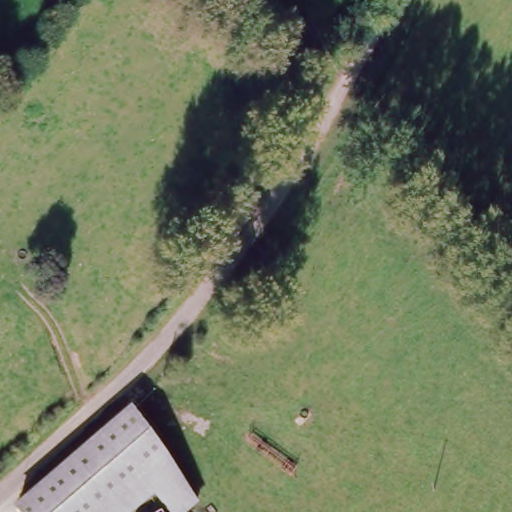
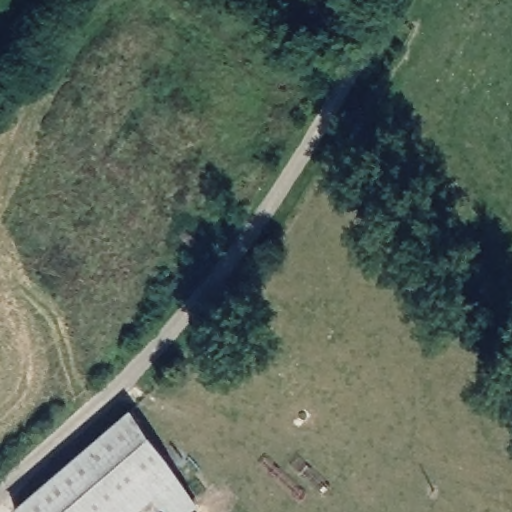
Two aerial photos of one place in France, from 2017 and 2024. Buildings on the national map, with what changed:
unchanged [(199,497),(181,512),(172,512),(153,490),(128,512),(19,512),(13,504),(132,401),(199,497)]

